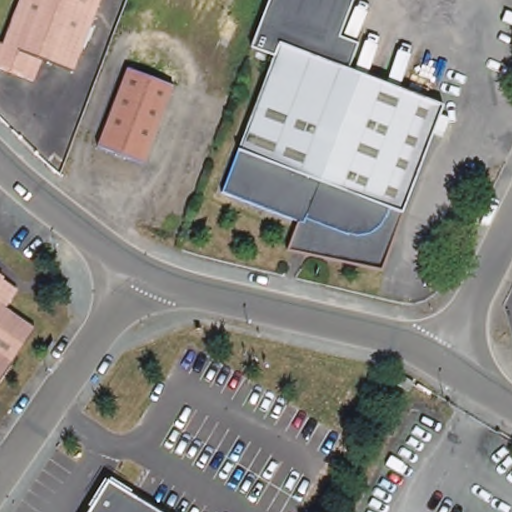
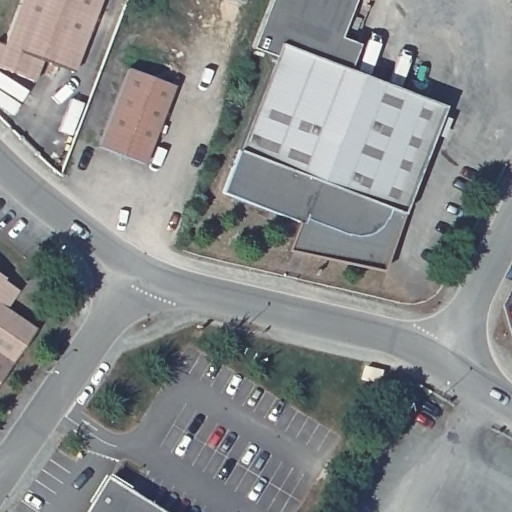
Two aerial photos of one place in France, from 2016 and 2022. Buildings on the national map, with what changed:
unchanged [(55,65),(43,61),(35,81),(0,68),(0,44),(4,45),(20,0),(100,0),(80,55),(73,72),(55,65)]
unchanged [(338,36),(357,43),(347,68),(346,67),(280,42),(275,54),(250,45),(267,0),(351,0),(338,36)]
unchanged [(280,42),(346,67),(347,68),(443,105),(401,213),(390,208),(385,220),(380,227),(373,232),(365,235),(355,235),(343,232),(319,222),(321,217),(309,212),(305,223),(223,191),(275,54),(280,42)]
unchanged [(123,76),(168,93),(139,171),(93,154),(123,76)]
unchanged [(2,282),(0,284),(0,280),(2,282)]
unchanged [(10,293),(11,302),(3,315),(33,335),(11,368),(0,383),(0,285),(10,293)]
unchanged [(155,512),(85,512),(105,481),(155,512)]

